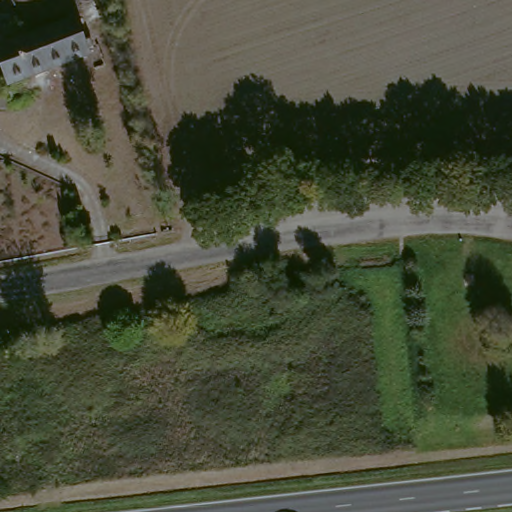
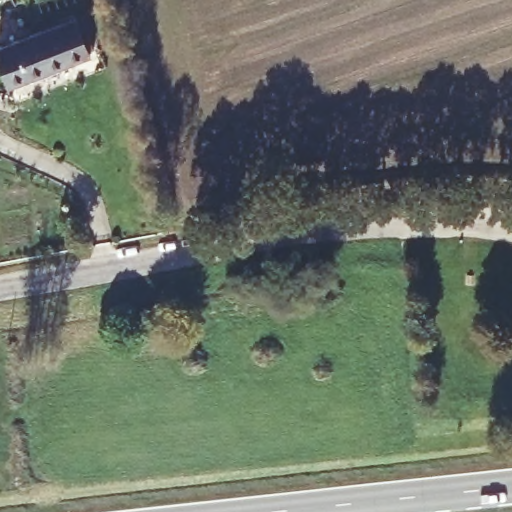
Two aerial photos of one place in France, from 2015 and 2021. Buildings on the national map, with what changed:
unchanged [(92,55),(8,82),(0,58),(0,44),(80,18),(92,55)]

